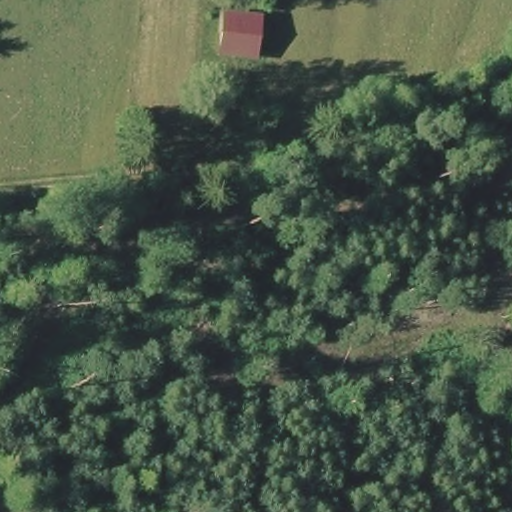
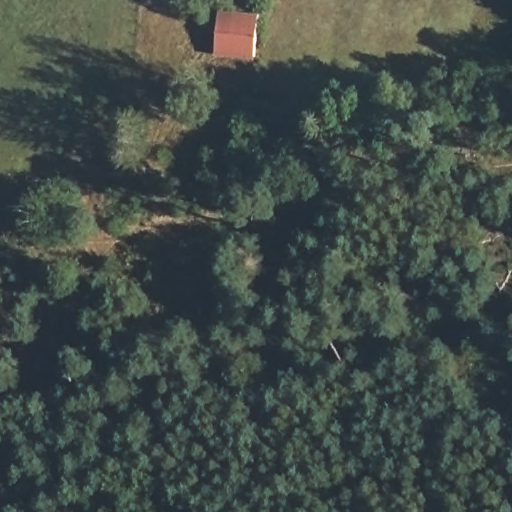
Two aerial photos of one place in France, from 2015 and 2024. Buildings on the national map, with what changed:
unchanged [(251,27),(249,65),(214,65),(216,26),(251,27)]

